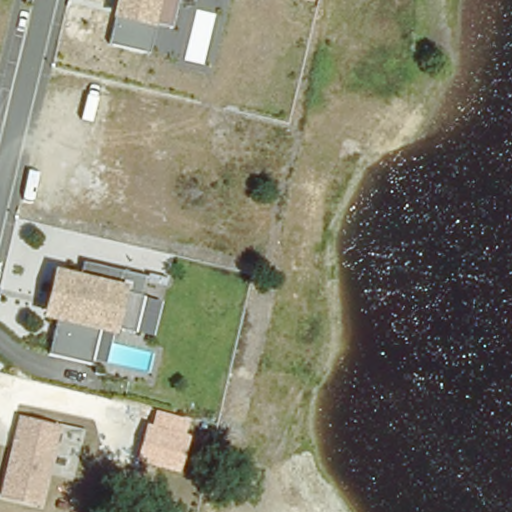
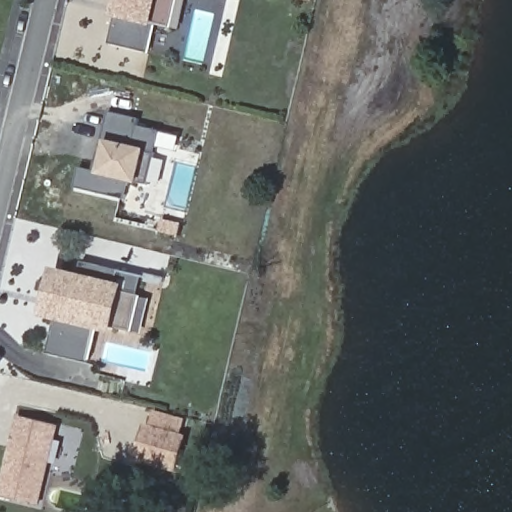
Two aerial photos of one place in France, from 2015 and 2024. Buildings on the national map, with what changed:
unchanged [(174,30),(155,25),(149,55),(108,45),(118,0),(180,0),(174,30)]
new [(164,160),(158,185),(148,182),(147,185),(139,184),(139,186),(128,184),(124,200),(74,188),(79,168),(93,171),(97,151),(102,152),(104,144),(101,142),(108,112),(139,119),(138,126),(160,131),(154,155),(153,158),(164,160)]
unchanged [(154,337),(119,330),(117,337),(99,333),(93,365),(47,353),(54,322),(41,319),(52,268),(77,273),(79,262),(145,277),(140,297),(162,303),(154,337)]
unchanged [(183,434),(190,436),(178,472),(136,460),(145,425),(151,425),(154,412),(188,420),(183,434)]
unchanged [(43,508),(1,498),(18,417),(62,428),(43,508)]

